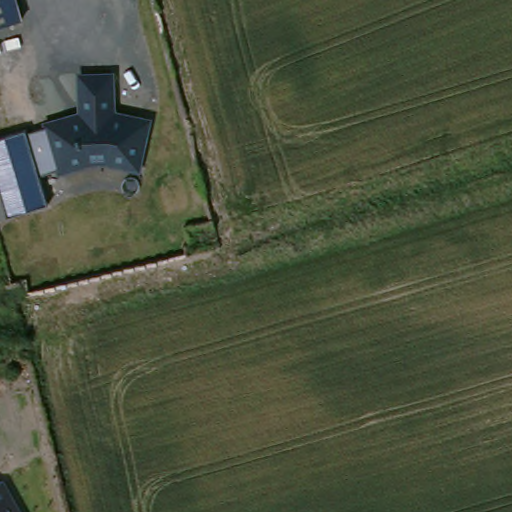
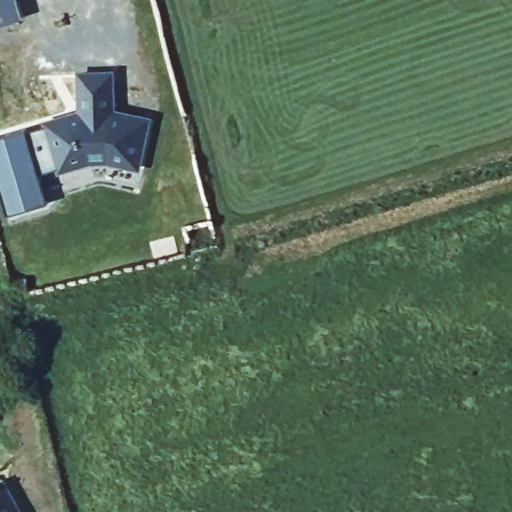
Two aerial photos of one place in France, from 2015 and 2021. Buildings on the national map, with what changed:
unchanged [(0,21),(0,0),(20,0),(24,14),(0,21)]
unchanged [(121,69),(121,107),(156,115),(146,164),(115,157),(96,154),(66,162),(53,114),(88,105),(88,69),(121,69)]
unchanged [(0,180),(0,139),(28,130),(29,133),(56,125),(66,162),(41,173),(48,202),(10,213),(0,180)]
unchanged [(0,487),(2,486),(17,512),(0,512),(0,487)]

